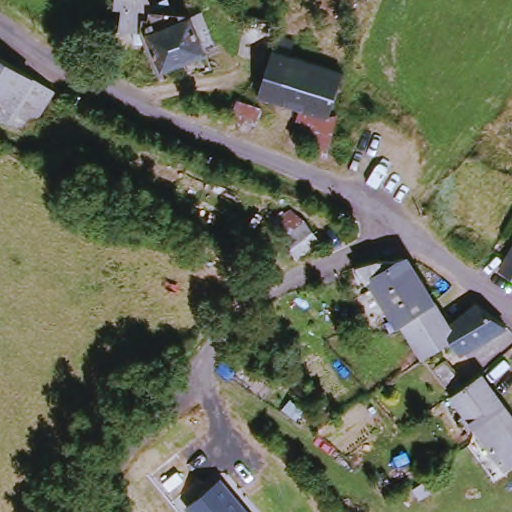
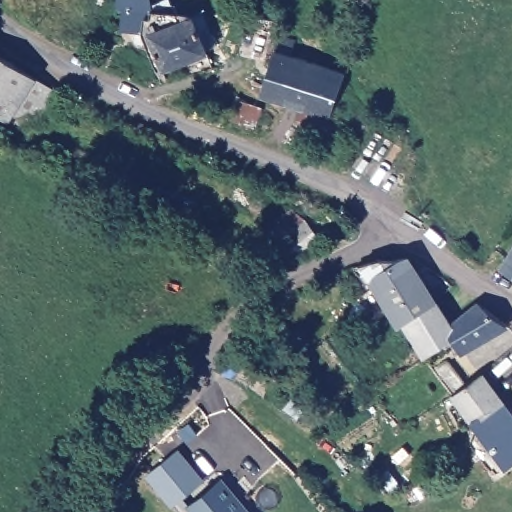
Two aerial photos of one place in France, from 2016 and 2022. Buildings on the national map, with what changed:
unchanged [(147,3),(155,0),(166,0),(169,19),(195,10),(210,44),(200,48),(201,50),(156,67),(140,29),(114,25),(117,6),(110,5),(111,0),(145,0),(147,3)]
unchanged [(257,97),(276,38),(293,43),(291,57),(342,74),(327,121),(297,111),(257,97)]
unchanged [(40,105),(31,101),(22,121),(0,112),(0,53),(53,75),(40,105)]
unchanged [(327,121),(336,124),(326,154),(290,138),(297,111),(327,121)]
unchanged [(512,245),(512,282),(494,271),(512,244),(512,245)]
unchanged [(364,281),(352,264),(380,255),(408,255),(432,296),(401,319),(396,323),(369,277),(364,281)]
unchanged [(443,323),(452,336),(441,340),(432,346),(424,353),(401,319),(432,296),(447,320),(443,323)]
unchanged [(506,321),(463,348),(452,336),(443,323),(447,320),(476,299),(506,321)]
unchanged [(480,375),(512,418),(512,463),(504,469),(450,396),(467,384),(480,375)]
new [(187,506),(182,499),(173,508),(146,477),(180,449),(213,485),(187,506)]
unchanged [(188,512),(185,508),(222,478),(249,512),(188,512)]

